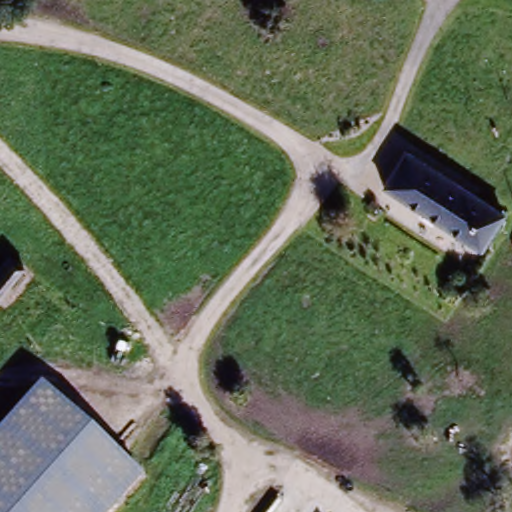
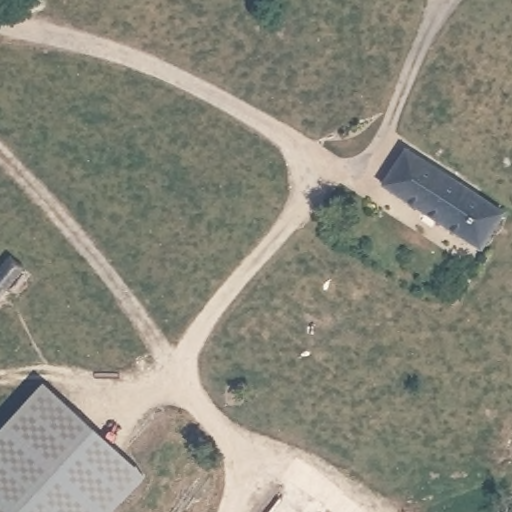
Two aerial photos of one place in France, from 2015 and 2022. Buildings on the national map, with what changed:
unchanged [(381,187),(401,158),(502,226),(483,255),(381,187)]
unchanged [(21,278),(0,304),(0,274),(6,266),(21,278)]
unchanged [(115,512),(0,512),(0,431),(41,386),(146,479),(115,512)]

